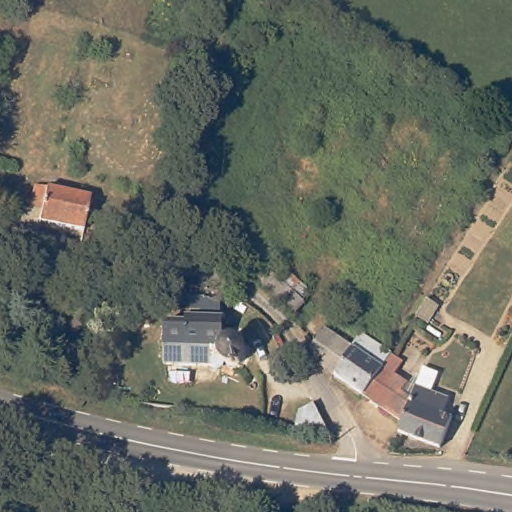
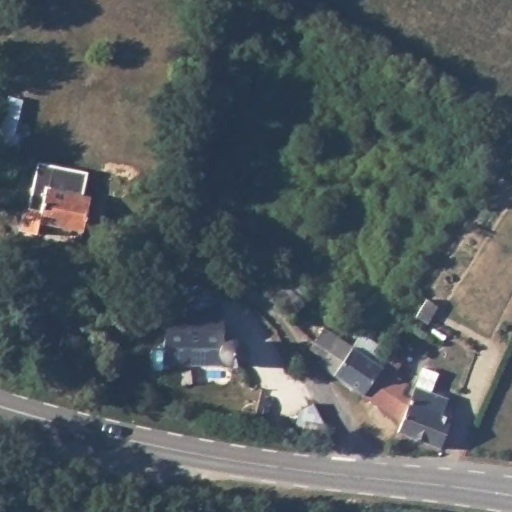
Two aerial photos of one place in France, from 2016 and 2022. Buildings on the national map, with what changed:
unchanged [(287,12),(376,70),(379,72),(365,94),(362,92),(357,89),(275,36),(276,34),(287,12)]
unchanged [(45,211),(49,189),(68,193),(104,202),(106,203),(100,228),(95,228),(93,237),(51,226),(48,237),(30,233),(35,209),(45,211)]
unchanged [(288,286),(309,306),(295,320),(274,300),(288,286)]
unchanged [(230,343),(238,347),(240,356),(237,363),(231,367),(225,366),(218,363),(217,369),(161,367),(162,326),(183,327),(183,301),(215,314),(215,321),(215,350),(224,344),(230,343)]
unchanged [(358,348),(367,335),(378,343),(397,355),(369,402),(323,367),(343,338),(358,348)]
unchanged [(402,376),(419,384),(424,373),(428,374),(432,366),(447,373),(439,391),(456,398),(449,414),(458,418),(448,441),(446,450),(404,434),(408,422),(388,413),(369,402),(397,355),(410,363),(402,376)]

